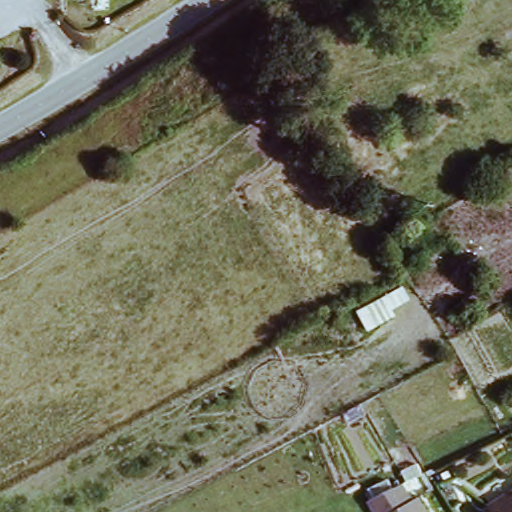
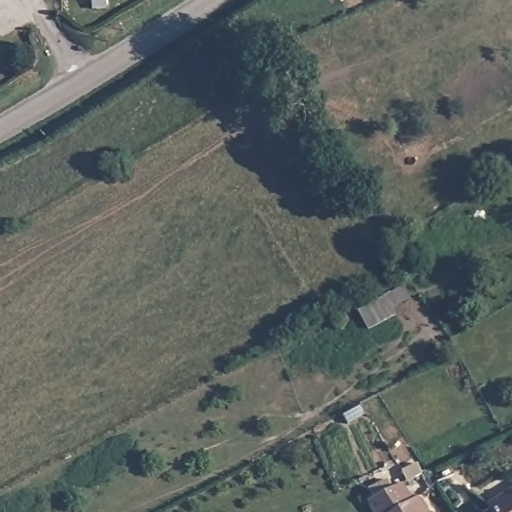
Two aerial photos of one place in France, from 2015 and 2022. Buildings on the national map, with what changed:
unchanged [(490,346),(502,370),(488,376),(477,354),(490,346)]
unchanged [(489,507),(512,492),(512,512),(492,512),(489,507)]
unchanged [(418,498),(427,512),(396,512),(418,498)]

